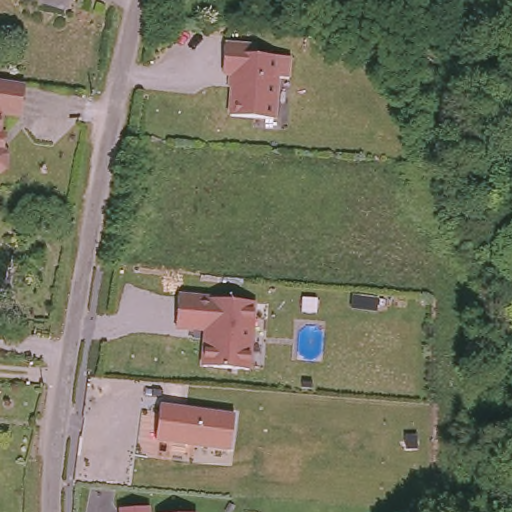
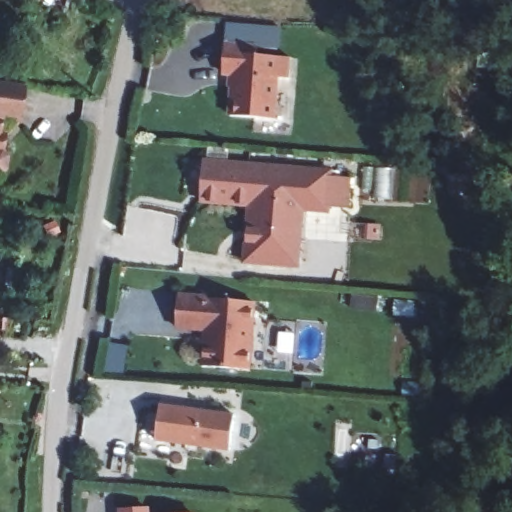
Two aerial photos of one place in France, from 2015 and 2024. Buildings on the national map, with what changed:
unchanged [(225,39),(257,41),(257,49),(292,52),(290,73),(277,72),(274,113),(230,110),(233,81),(228,81),(230,67),(223,67),(225,39)]
unchanged [(2,117),(0,126),(0,83),(12,85),(25,87),(25,88),(19,120),(2,117)]
unchanged [(5,158),(2,172),(0,174),(0,137),(3,138),(0,153),(5,158)]
new [(333,175),(351,177),(349,208),(331,206),(330,213),(305,211),(300,267),(242,263),(247,208),(200,203),(204,157),(333,169),(333,175)]
unchanged [(256,301),(252,371),(200,366),(202,333),(177,331),(180,292),(256,301)]
unchanged [(235,413),(230,451),(157,442),(160,403),(235,413)]
unchanged [(148,507),(149,512),(119,512),(118,509),(148,507)]

